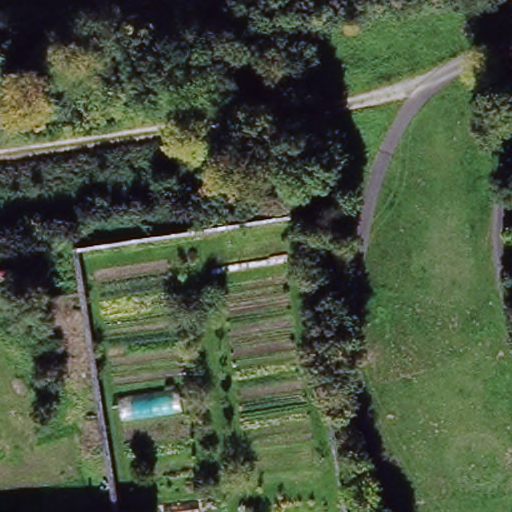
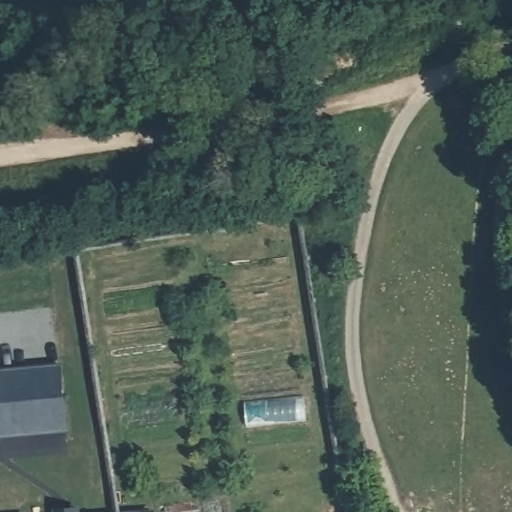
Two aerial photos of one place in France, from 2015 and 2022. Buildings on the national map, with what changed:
new [(63,365),(70,433),(0,439),(0,370),(63,365)]
unchanged [(140,509),(148,507),(149,512),(114,512),(140,509)]

